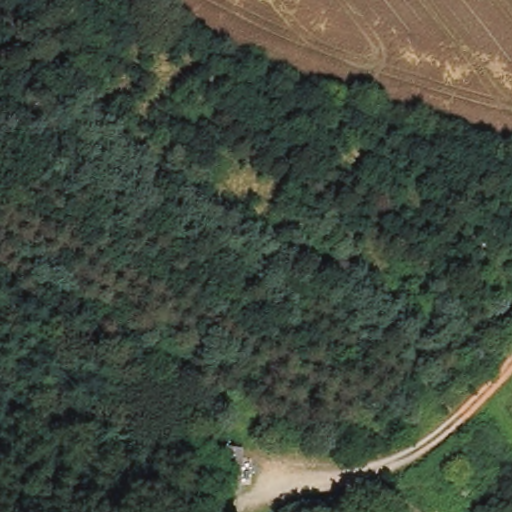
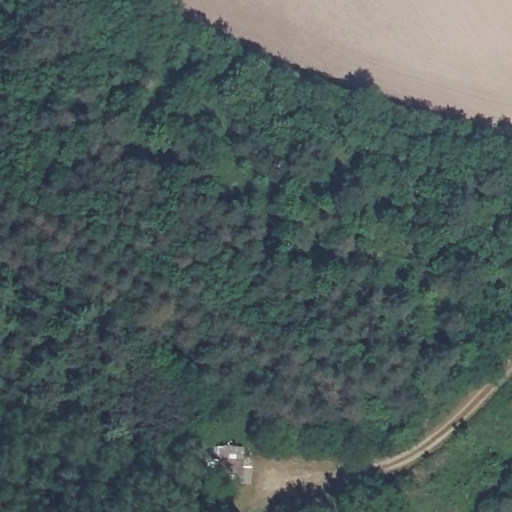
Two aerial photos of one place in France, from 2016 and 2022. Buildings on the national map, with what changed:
unchanged [(231,454),(256,456),(254,481),(228,479),(231,454)]

